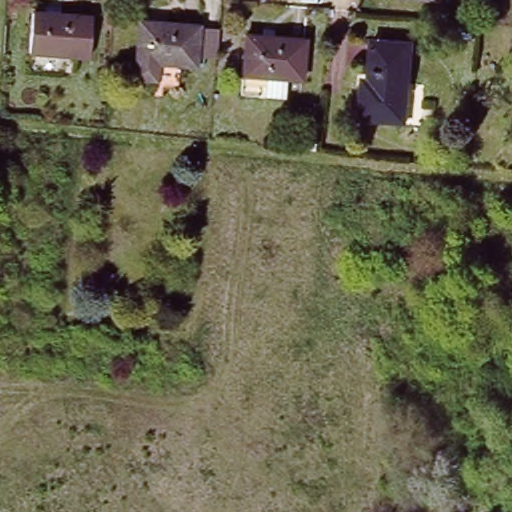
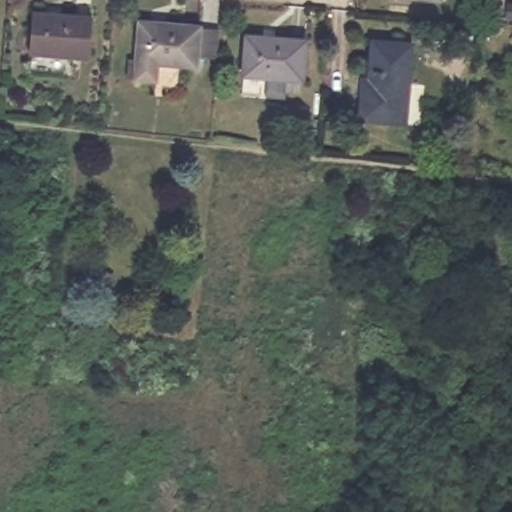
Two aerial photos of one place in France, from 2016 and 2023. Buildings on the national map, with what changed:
unchanged [(30,15),(89,20),(85,59),(27,54),(30,15)]
unchanged [(132,23),(190,28),(187,66),(129,61),(132,23)]
unchanged [(355,119),(357,95),(363,96),(369,40),(408,44),(400,124),(355,119)]
unchanged [(243,41),(302,46),(299,85),(240,80),(243,41)]

